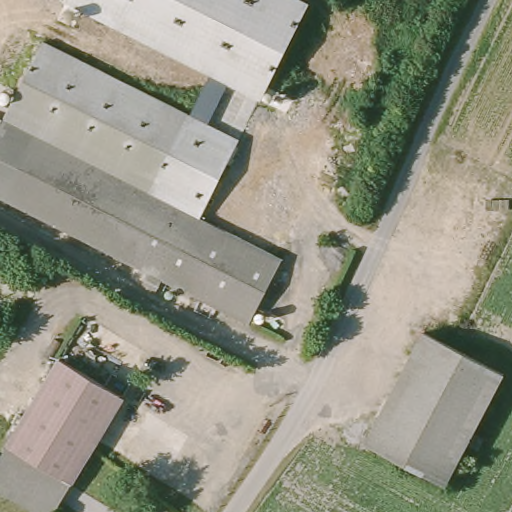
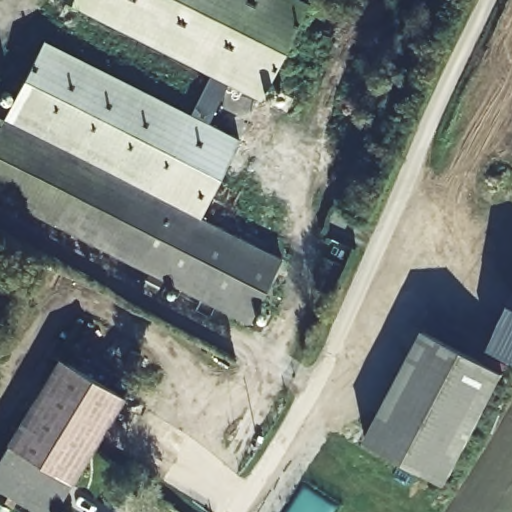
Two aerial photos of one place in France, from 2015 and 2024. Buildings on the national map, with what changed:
unchanged [(193,117),(212,76),(64,1),(65,0),(303,0),(309,3),(261,100),(228,84),(209,123),(240,138),(199,218),(156,196),(193,117)]
unchanged [(283,261),(261,308),(266,315),(264,321),(259,322),(253,316),(248,324),(0,199),(0,117),(4,119),(11,105),(2,99),(0,95),(0,92),(3,87),(11,87),(18,90),(44,39),(193,117),(156,196),(283,261)]
new [(487,359),(512,311),(512,372),(507,369),(491,361),(487,359)]
unchanged [(423,336),(499,375),(467,441),(444,428),(389,398),(423,336)]
unchanged [(95,441),(52,512),(48,512),(8,489),(0,485),(0,484),(8,465),(0,461),(0,459),(60,356),(121,392),(124,394),(95,441)]
unchanged [(442,487),(364,445),(389,398),(444,428),(467,441),(442,487)]
unchanged [(0,484),(0,461),(8,465),(0,484)]

